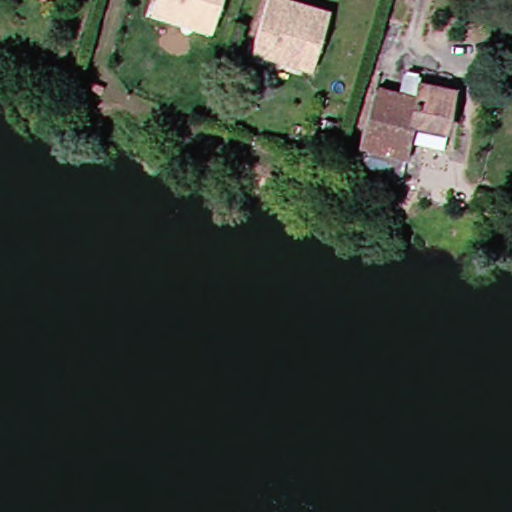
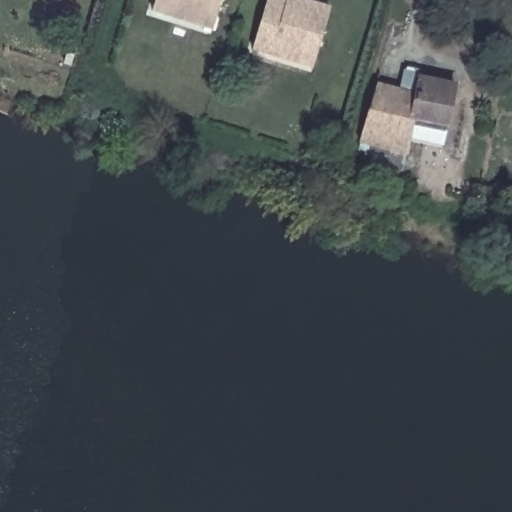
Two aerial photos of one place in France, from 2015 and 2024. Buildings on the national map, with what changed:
unchanged [(157,12),(160,0),(222,0),(214,24),(212,31),(177,19),(157,12)]
unchanged [(259,49),(274,0),(300,0),(300,4),(337,15),(324,62),(322,70),(284,57),(259,49)]
unchanged [(402,151),(368,141),(381,82),(425,95),(432,75),(466,83),(457,122),(425,116),(423,127),(416,156),(402,151)]

